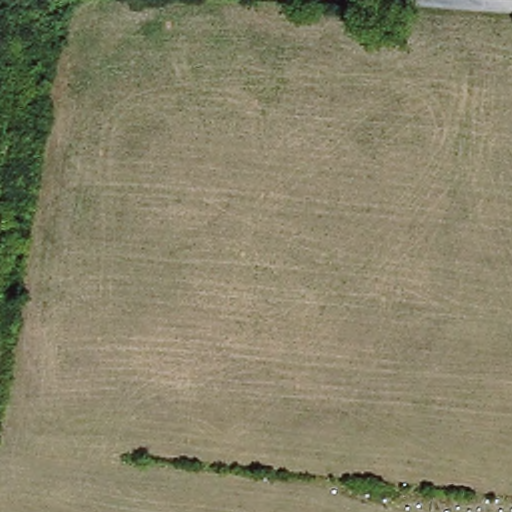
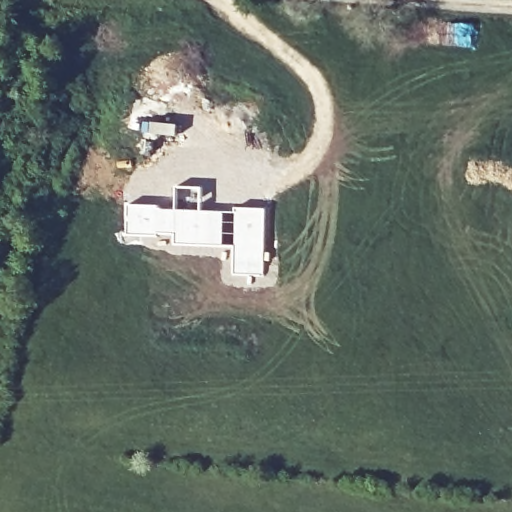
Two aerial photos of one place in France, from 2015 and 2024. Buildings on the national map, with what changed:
new [(152,202),(173,206),(175,183),(203,184),(202,208),(232,209),(231,239),(226,239),(225,245),(171,244),(172,235),(125,234),(125,202),(152,202)]
new [(231,243),(231,239),(232,209),(233,205),(267,206),(265,275),(230,274),(231,243)]

